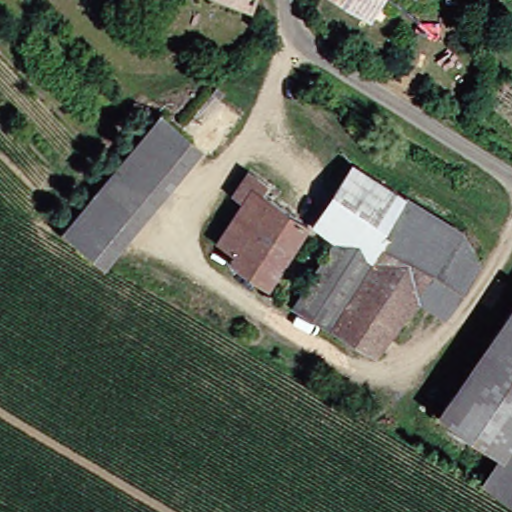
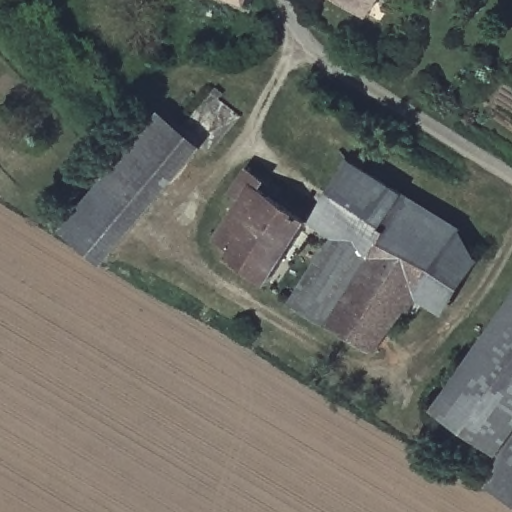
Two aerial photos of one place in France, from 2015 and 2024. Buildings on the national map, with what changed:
unchanged [(253,3),(246,0),(254,0),(253,3)]
unchanged [(372,10),(358,0),(379,0),(372,10)]
unchanged [(185,129),(215,97),(241,113),(212,151),(185,129)]
unchanged [(191,145),(93,255),(66,227),(163,118),(191,145)]
unchanged [(413,303),(407,299),(382,340),(302,290),(340,230),(322,217),(363,160),(468,226),(460,238),(426,286),(413,303)]
unchanged [(247,194),(240,190),(251,172),(254,166),(269,175),(265,182),(312,214),(271,277),(217,241),(247,194)]
unchanged [(460,238),(481,253),(452,305),(426,286),(460,238)]
unchanged [(507,449),(447,407),(512,312),(512,442),(507,449)]
unchanged [(507,449),(512,442),(512,493),(488,477),(507,449)]

